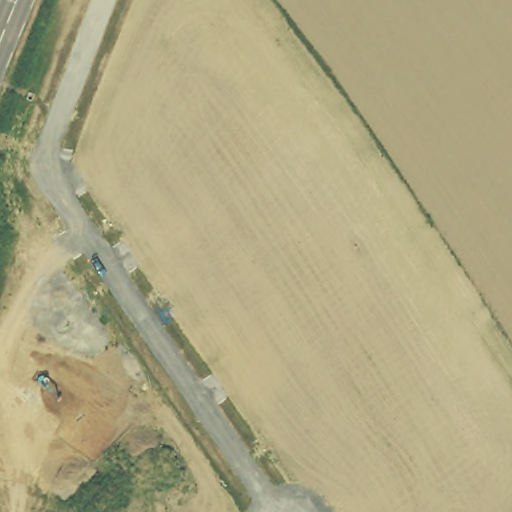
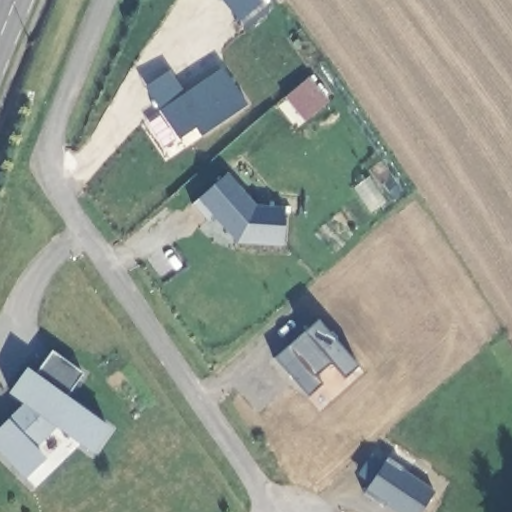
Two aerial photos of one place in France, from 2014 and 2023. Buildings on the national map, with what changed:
new [(260,5),(235,23),(217,0),(257,0),(260,5)]
new [(222,70),(247,107),(200,139),(195,131),(178,142),(159,114),(160,112),(222,70)]
new [(283,247),(236,244),(213,217),(208,221),(193,204),(226,172),(256,206),(285,208),(283,247)]
new [(10,393),(27,369),(36,375),(51,353),(81,374),(66,397),(110,428),(93,453),(55,429),(35,450),(45,461),(25,478),(0,453),(0,427),(23,404),(10,393)]
new [(435,493),(422,512),(396,512),(365,491),(387,460),(435,493)]

